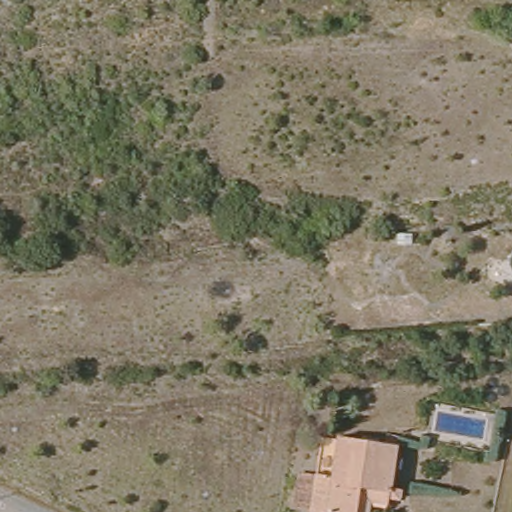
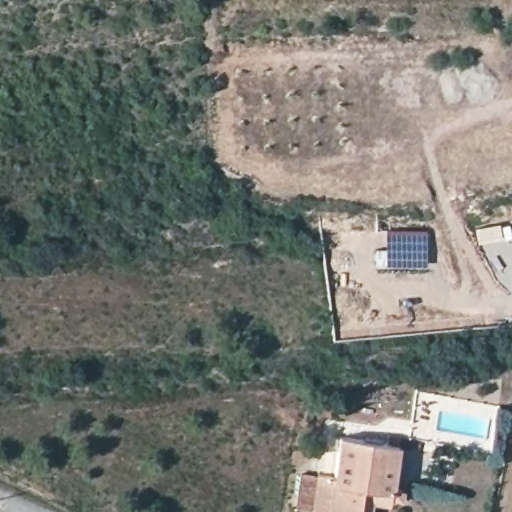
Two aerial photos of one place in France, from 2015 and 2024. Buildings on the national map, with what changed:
new [(427,266),(386,265),(385,230),(426,231),(427,266)]
unchanged [(302,473),(317,476),(332,478),(339,440),(395,449),(388,494),(386,503),(367,501),(365,512),(295,512),(302,473)]

